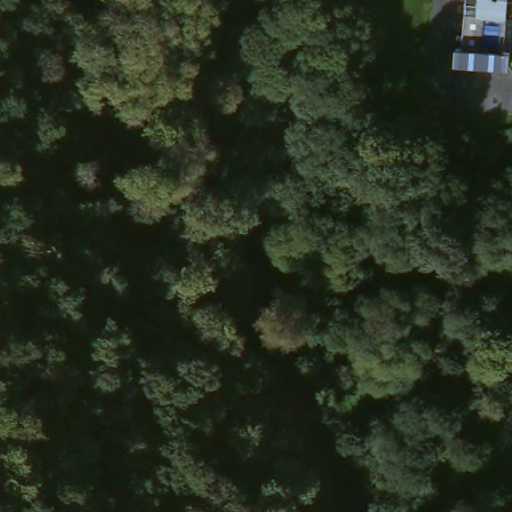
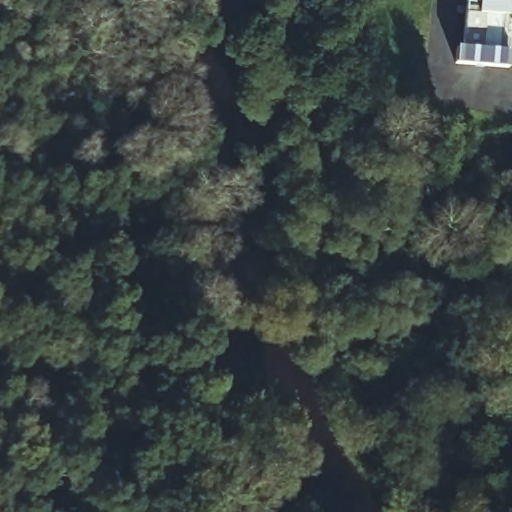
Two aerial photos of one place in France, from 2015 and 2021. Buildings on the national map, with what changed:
unchanged [(506,13),(507,55),(512,54),(512,70),(462,71),(462,55),(467,55),(465,0),(504,0),(505,13),(506,13)]

